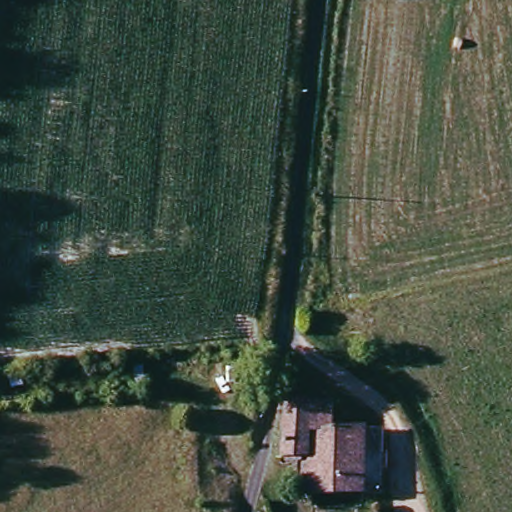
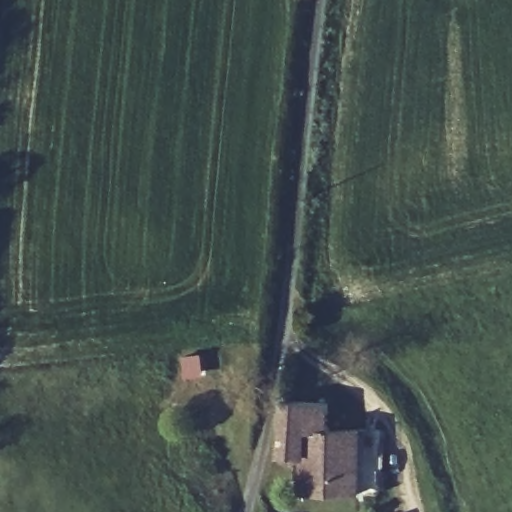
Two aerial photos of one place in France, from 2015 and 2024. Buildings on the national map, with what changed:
unchanged [(357,494),(300,494),(301,447),(280,446),(280,425),(285,401),(327,404),(329,431),(359,433),(357,494)]
unchanged [(376,434),(375,493),(357,494),(359,433),(376,434)]

